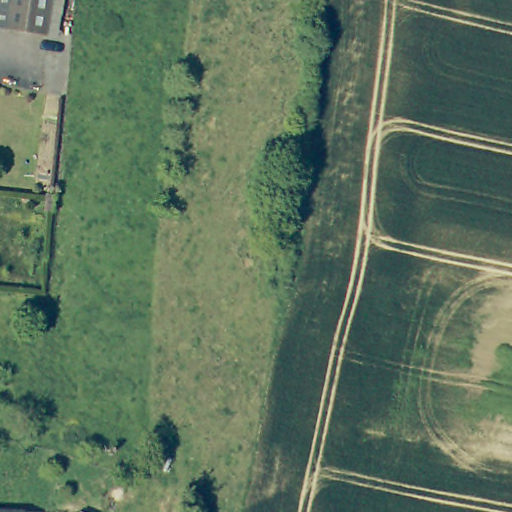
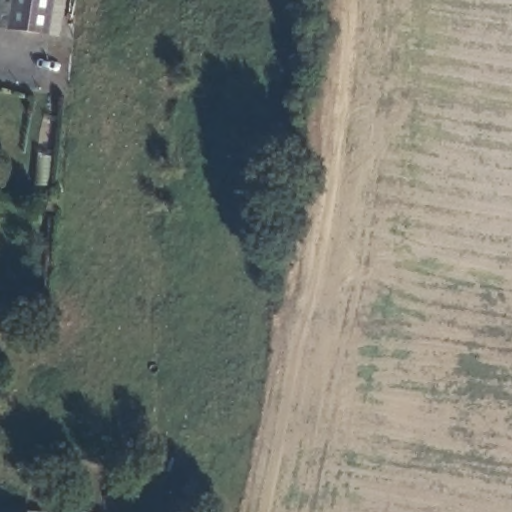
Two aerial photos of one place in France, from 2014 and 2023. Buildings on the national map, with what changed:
unchanged [(4,26),(7,0),(63,0),(59,32),(4,26)]
unchanged [(0,511),(9,512),(0,512),(0,511)]

